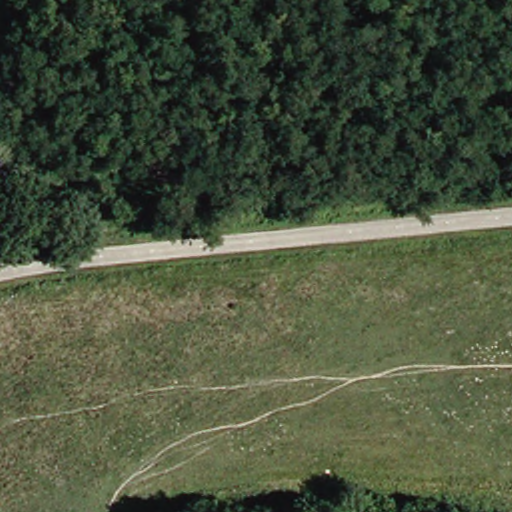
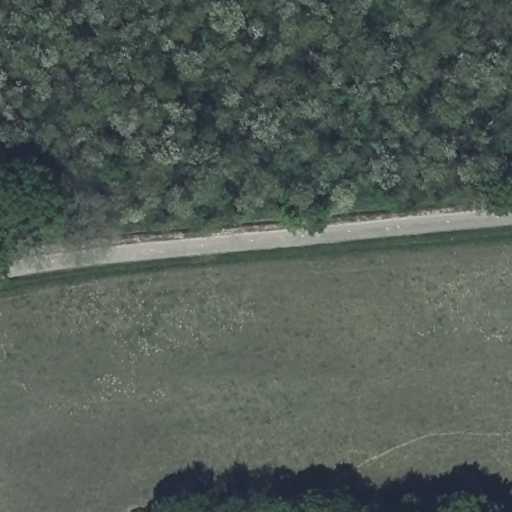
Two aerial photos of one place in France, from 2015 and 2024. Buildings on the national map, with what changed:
[]

